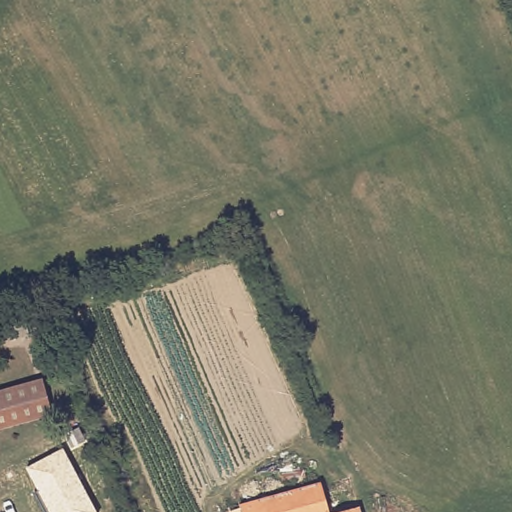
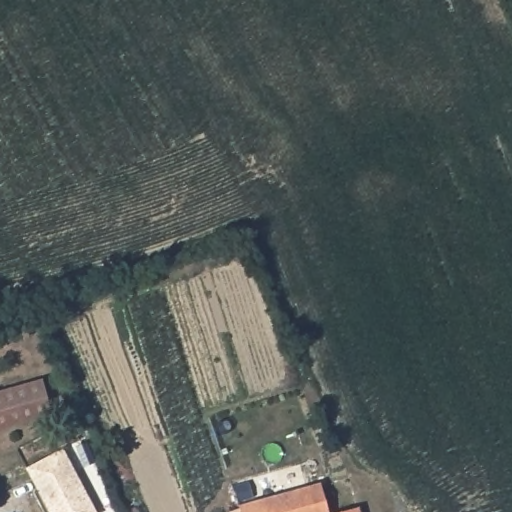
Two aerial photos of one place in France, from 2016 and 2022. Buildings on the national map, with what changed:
unchanged [(2,342),(0,335),(0,329),(23,322),(27,335),(2,342)]
unchanged [(0,391),(41,380),(55,421),(0,432),(0,391)]
unchanged [(65,448),(100,512),(50,512),(29,466),(65,448)]
unchanged [(359,512),(241,512),(237,501),(317,477),(328,511),(352,504),(357,503),(359,512)]

